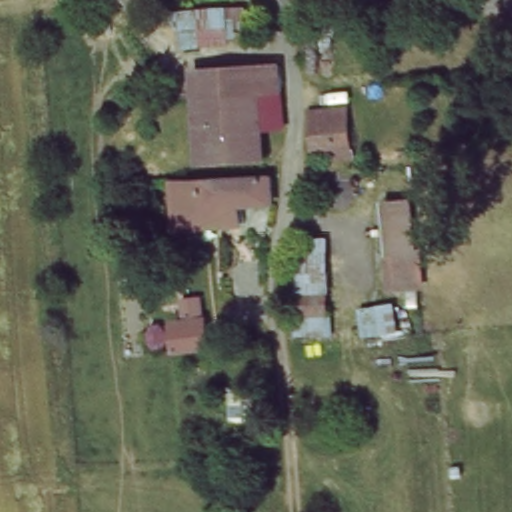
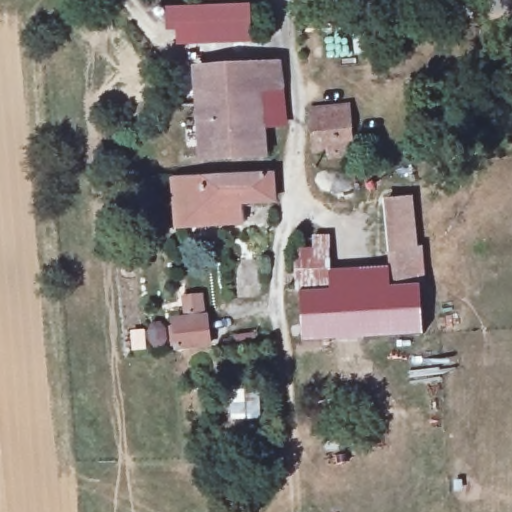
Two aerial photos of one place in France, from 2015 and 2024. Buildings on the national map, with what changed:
demolished [(203,4),(250,4),(250,28),(232,30),(232,46),(204,46),(203,4)]
new [(177,32),(167,32),(165,9),(253,5),(255,42),(177,46),(177,32)]
unchanged [(217,162),(218,169),(200,171),(190,95),(187,68),(250,62),(272,60),(275,90),(280,124),(257,126),(261,155),(231,160),(217,162)]
unchanged [(310,134),(308,108),(346,106),(347,135),(362,134),(363,156),(364,161),(330,162),(329,151),(312,152),(310,134)]
unchanged [(179,205),(177,179),(270,173),(268,197),(235,200),(179,205)]
unchanged [(235,200),(237,221),(182,226),(179,205),(235,200)]
unchanged [(418,200),(420,255),(389,256),(383,201),(418,200)]
new [(300,292),(295,292),(295,250),(313,249),(313,237),(330,237),(330,272),(389,269),(389,289),(420,285),(422,337),(303,343),(300,292)]
unchanged [(423,284),(389,289),(389,256),(420,255),(423,284)]
demolished [(330,273),(330,291),(296,292),(295,274),(330,273)]
unchanged [(212,350),(178,354),(173,318),(209,314),(212,350)]

